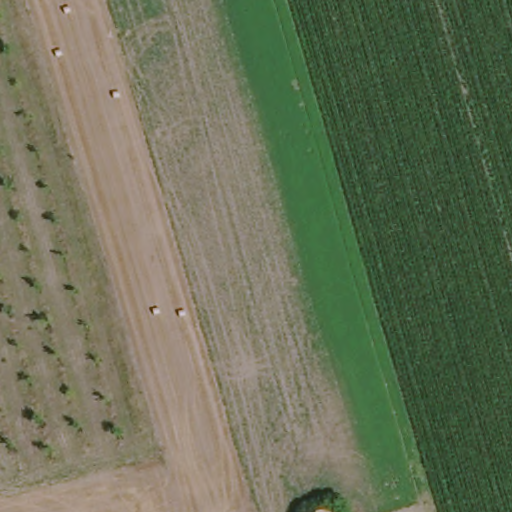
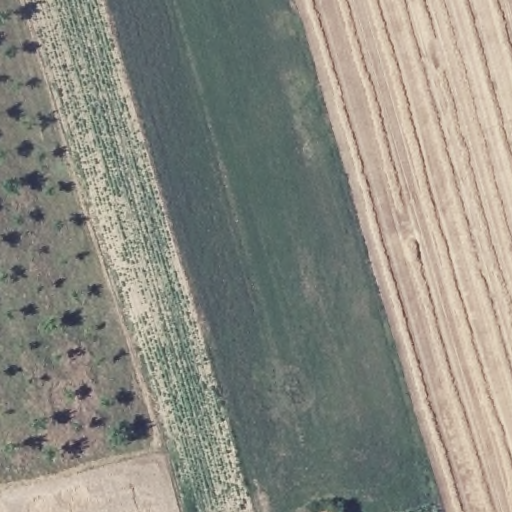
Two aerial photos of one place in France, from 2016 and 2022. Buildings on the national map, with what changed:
unchanged [(332,505),(334,512),(312,512),(316,511),(332,505)]

